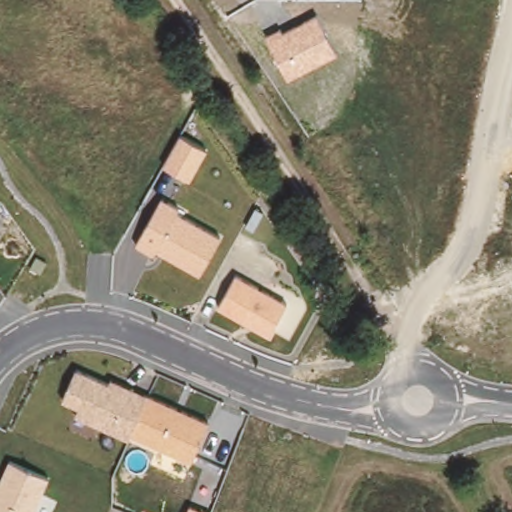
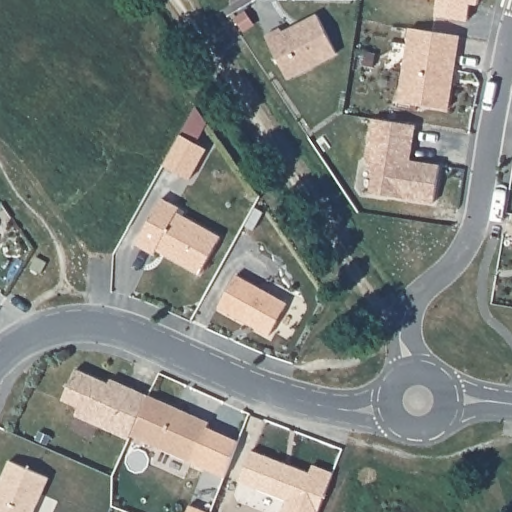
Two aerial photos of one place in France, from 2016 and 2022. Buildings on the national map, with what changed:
new [(472,1),(470,19),(437,14),(439,0),(481,0),(480,3),(472,1)]
unchanged [(264,36),(280,26),(282,30),(319,12),(337,51),(288,80),(264,36)]
new [(413,26),(462,33),(450,108),(402,100),(413,26)]
new [(418,123),(414,151),(413,159),(442,163),(436,202),(372,192),(375,175),(369,155),(375,116),(418,123)]
new [(180,133),(206,147),(190,178),(163,164),(180,133)]
unchanged [(200,276),(159,253),(156,256),(134,244),(161,196),(182,208),(180,212),(224,236),(200,276)]
unchanged [(270,338),(215,308),(235,272),(290,302),(270,338)]
unchanged [(194,464),(131,435),(130,438),(75,415),(78,407),(60,399),(71,373),(75,367),(109,383),(111,377),(212,423),(194,464)]
new [(239,441),(225,478),(194,464),(210,428),(239,441)]
new [(239,482),(251,450),(310,473),(313,465),(334,473),(319,512),(283,512),(286,501),(239,482)]
unchanged [(0,477),(7,460),(49,477),(34,512),(0,512),(0,477)]
new [(191,506),(207,512),(189,512),(191,506)]

